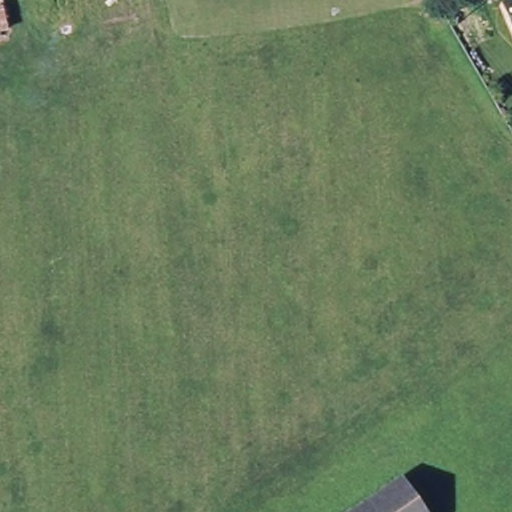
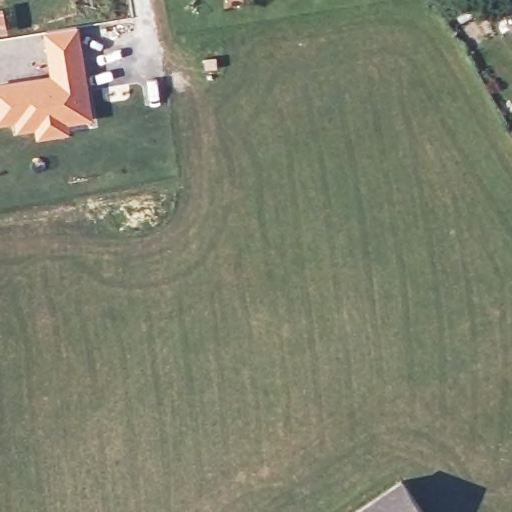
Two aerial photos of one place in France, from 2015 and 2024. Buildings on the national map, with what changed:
new [(42,32),(79,26),(95,120),(73,125),(74,131),(36,139),(33,132),(13,134),(11,125),(0,126),(0,83),(49,72),(42,32)]
unchanged [(425,512),(356,512),(404,479),(425,512)]

